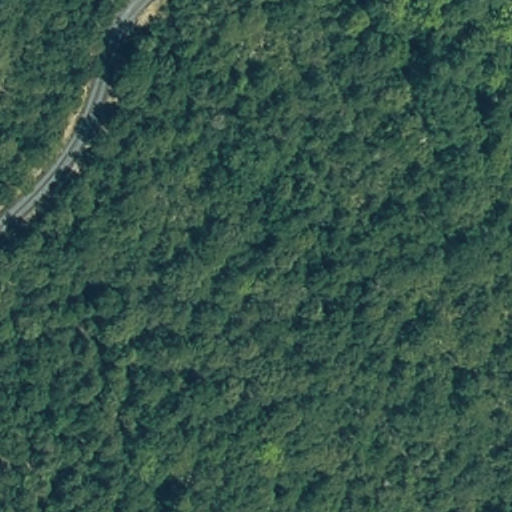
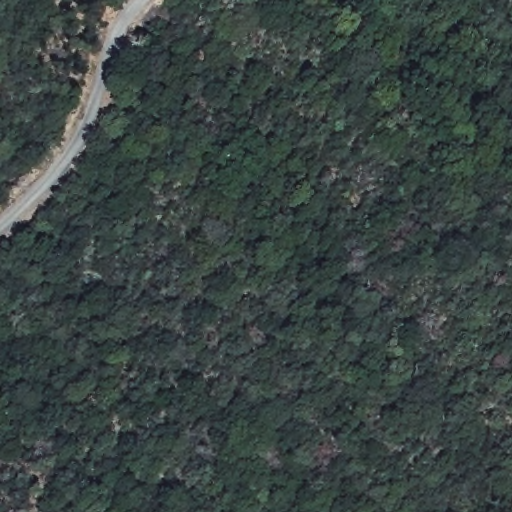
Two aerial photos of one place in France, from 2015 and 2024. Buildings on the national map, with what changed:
[]

